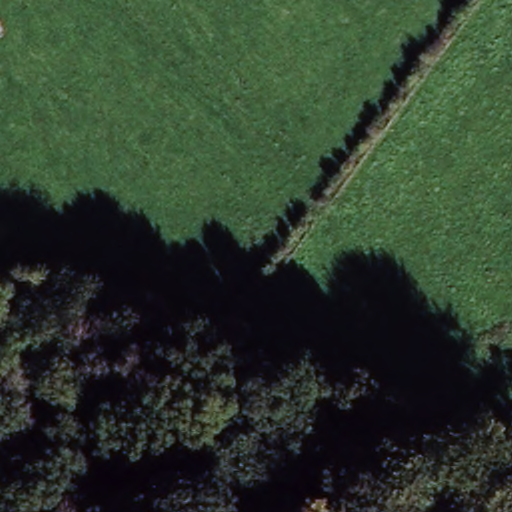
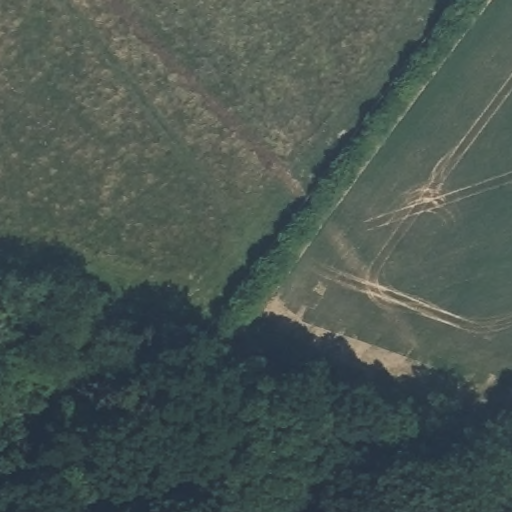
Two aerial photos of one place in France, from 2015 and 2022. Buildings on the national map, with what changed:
[]

